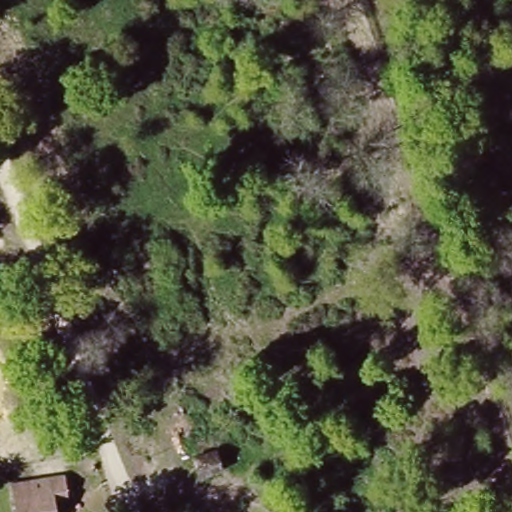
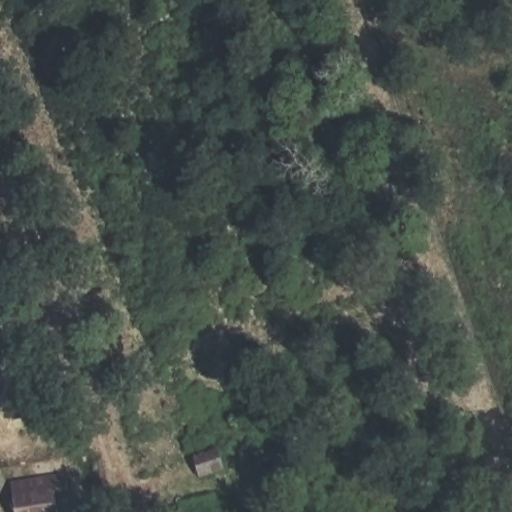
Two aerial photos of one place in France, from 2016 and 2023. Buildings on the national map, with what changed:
unchanged [(218,449),(225,470),(203,475),(197,455),(218,449)]
unchanged [(67,495),(50,498),(53,512),(14,512),(10,481),(63,472),(67,495)]

